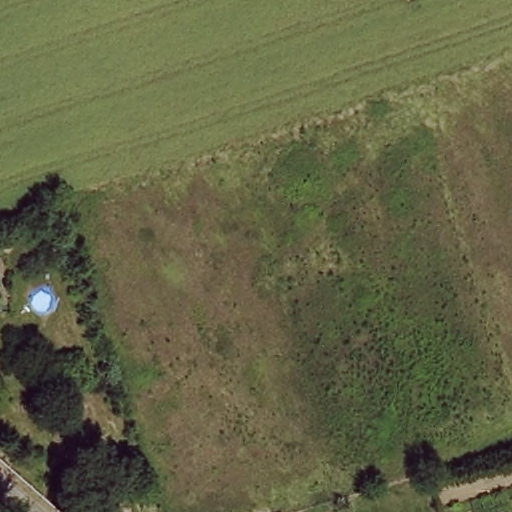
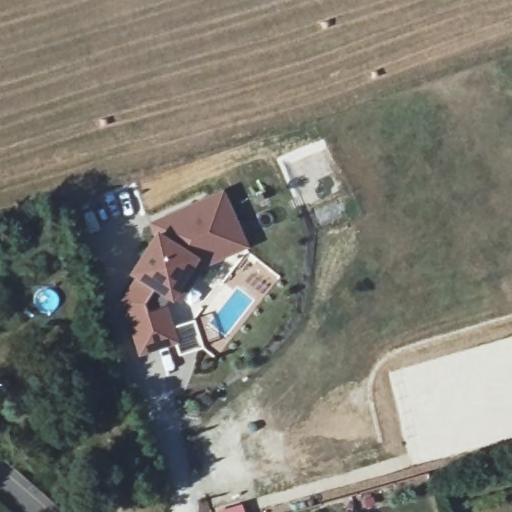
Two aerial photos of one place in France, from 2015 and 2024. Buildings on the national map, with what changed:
new [(145,350),(128,300),(144,275),(137,271),(143,262),(161,233),(157,222),(225,192),(245,236),(249,245),(205,263),(182,300),(175,295),(168,306),(179,340),(145,350)]

